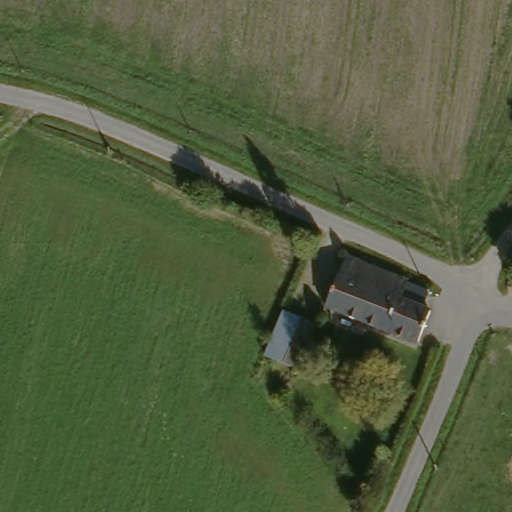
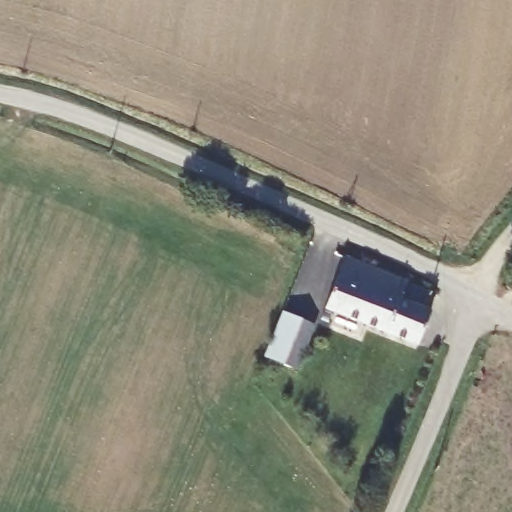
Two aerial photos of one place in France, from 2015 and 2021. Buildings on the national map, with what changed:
unchanged [(414,351),(322,316),(342,262),(405,286),(396,303),(429,315),(414,351)]
unchanged [(279,317),(309,329),(291,370),(262,358),(279,317)]

